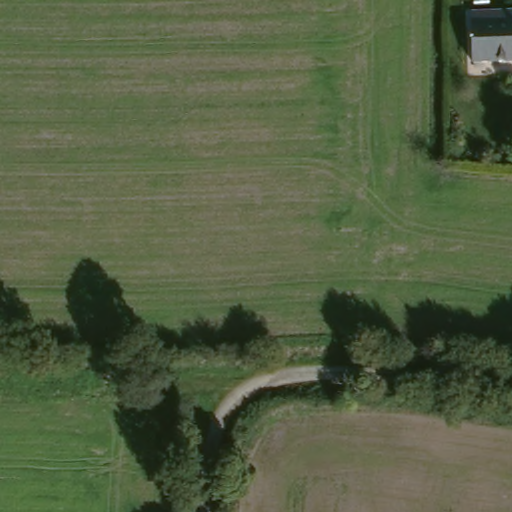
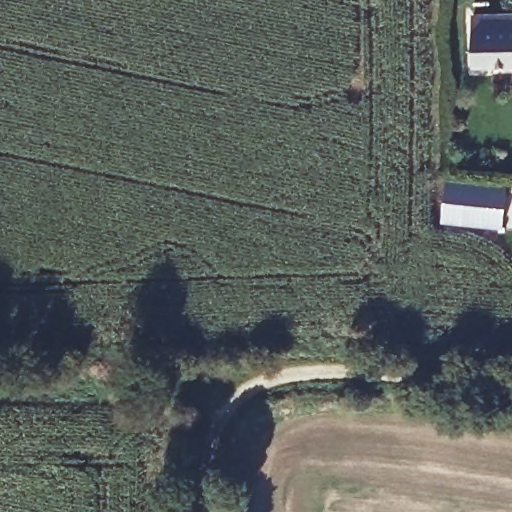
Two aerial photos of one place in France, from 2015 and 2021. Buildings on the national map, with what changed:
unchanged [(512,68),(470,69),(468,19),(512,17),(512,68)]
new [(446,184),(507,190),(503,230),(442,224),(446,184)]

